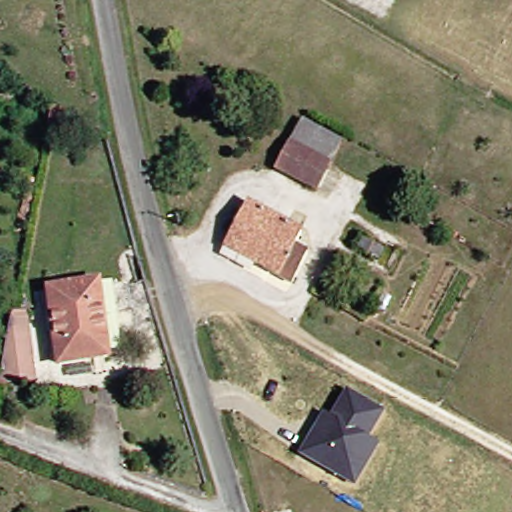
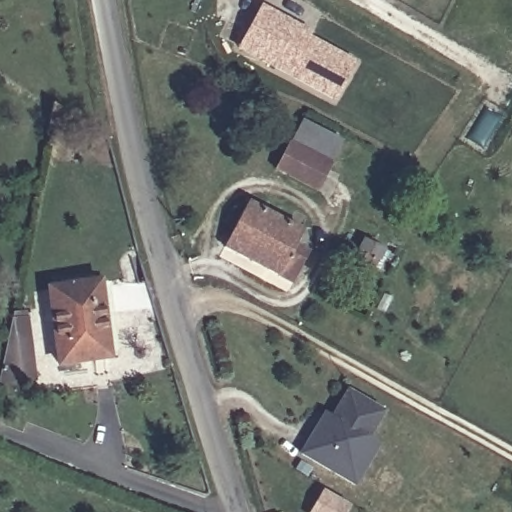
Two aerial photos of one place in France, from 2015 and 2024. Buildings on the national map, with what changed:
new [(334,102),(238,49),(260,8),(268,13),(270,8),(306,28),(304,33),(356,61),(334,102)]
unchanged [(75,128),(72,144),(55,134),(57,117),(75,128)]
unchanged [(299,119),(338,141),(326,164),(287,142),(299,119)]
unchanged [(326,164),(311,189),(273,168),(287,142),(326,164)]
unchanged [(225,234),(246,197),(302,227),(292,246),(304,252),(285,287),(229,257),(217,249),(225,234)]
unchanged [(349,244),(356,231),(376,242),(369,255),(349,244)]
unchanged [(146,268),(153,292),(88,308),(82,283),(146,268)]
unchanged [(100,356),(53,367),(35,295),(82,283),(88,308),(100,356)]
unchanged [(19,313),(35,376),(0,385),(0,345),(6,314),(19,313)]
unchanged [(385,414),(370,441),(379,445),(357,488),(297,456),(323,412),(330,415),(344,391),(385,414)]

